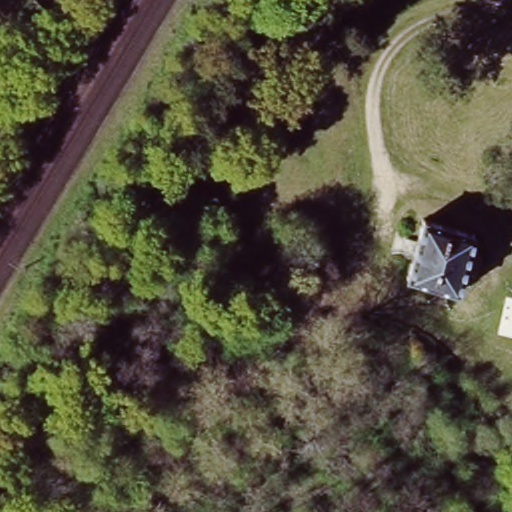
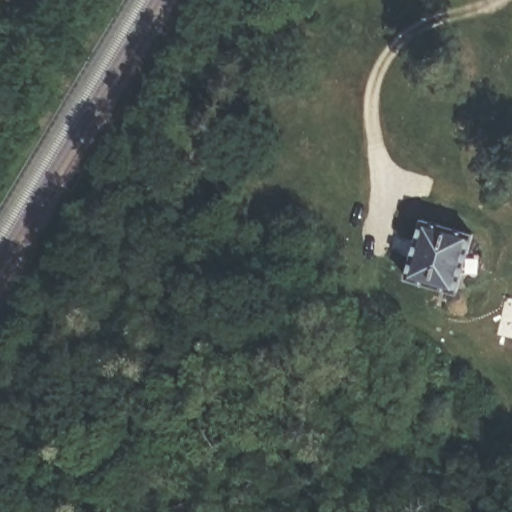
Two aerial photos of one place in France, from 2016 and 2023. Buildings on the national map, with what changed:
unchanged [(0,115),(0,107),(3,109),(0,115)]
unchanged [(408,254),(411,246),(421,221),(474,242),(468,258),(460,277),(452,297),(398,276),(408,254)]

